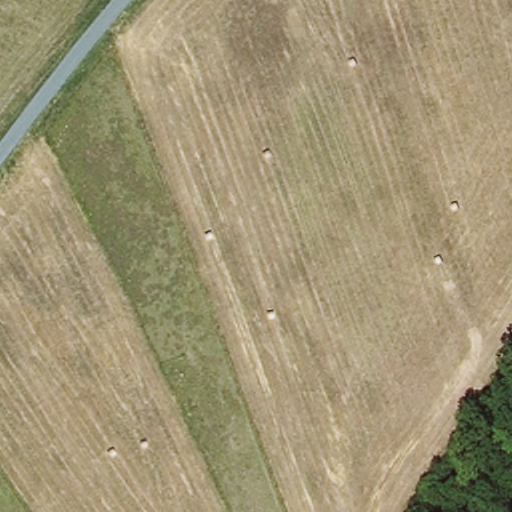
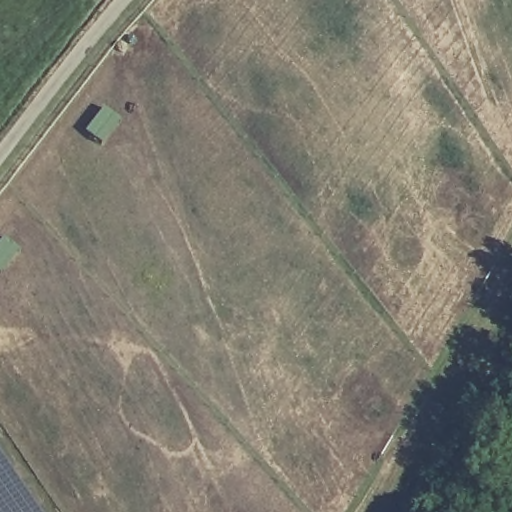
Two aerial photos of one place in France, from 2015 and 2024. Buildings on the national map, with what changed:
new [(16,486),(33,512),(0,512),(0,462),(16,486)]

